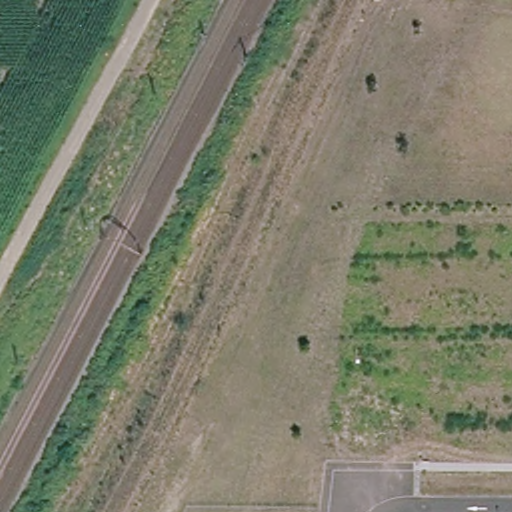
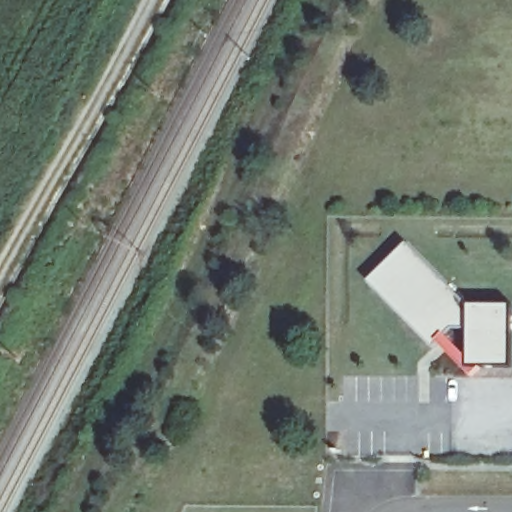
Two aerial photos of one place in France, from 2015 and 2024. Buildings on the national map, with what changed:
new [(472,305),(511,305),(511,368),(468,368),(468,330),(449,331),(434,347),(370,280),(408,243),(472,305)]

